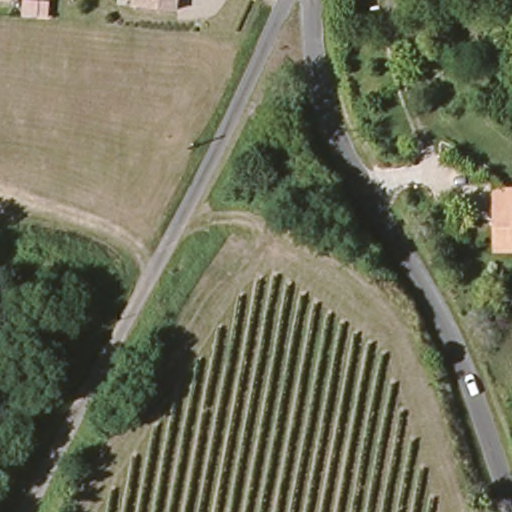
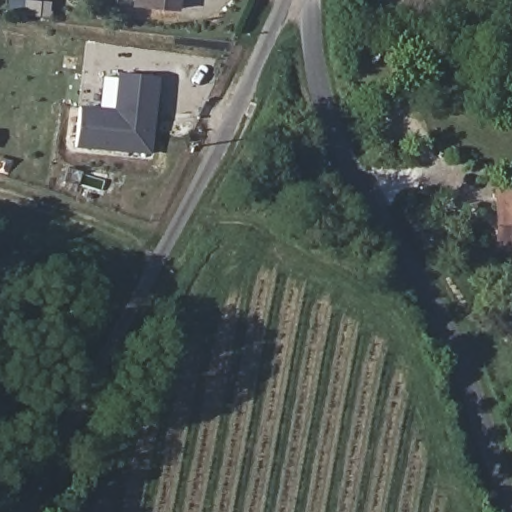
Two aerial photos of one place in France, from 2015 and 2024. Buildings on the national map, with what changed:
unchanged [(178,6),(131,3),(131,0),(179,0),(178,6)]
new [(153,156),(75,149),(80,106),(114,109),(117,73),(159,77),(153,156)]
unchanged [(496,250),(497,210),(498,191),(512,191),(512,251),(496,250)]

